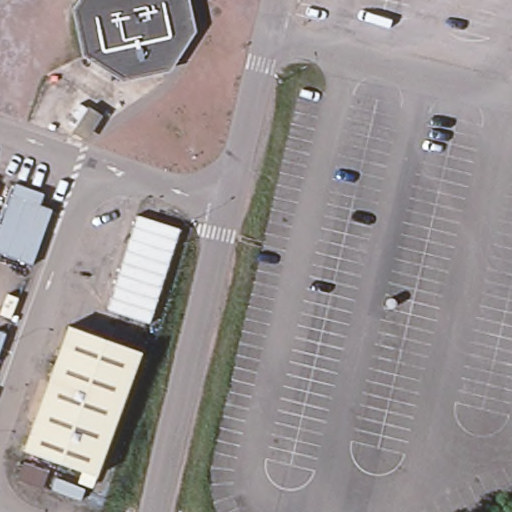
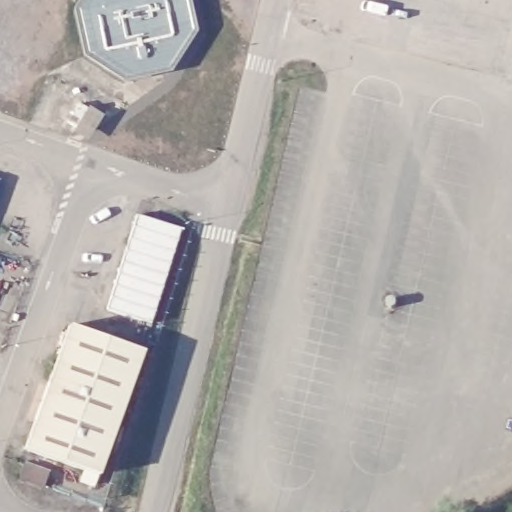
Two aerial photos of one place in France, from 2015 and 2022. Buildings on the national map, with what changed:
unchanged [(87,53),(77,9),(81,0),(188,0),(195,31),(170,67),(127,79),(87,53)]
demolished [(50,209),(32,263),(0,252),(0,224),(15,182),(44,194),(40,206),(50,209)]
unchanged [(177,227),(147,320),(105,306),(137,214),(177,227)]
unchanged [(140,352),(97,477),(23,452),(65,326),(140,352)]
demolished [(5,332),(0,346),(0,331),(5,332)]

